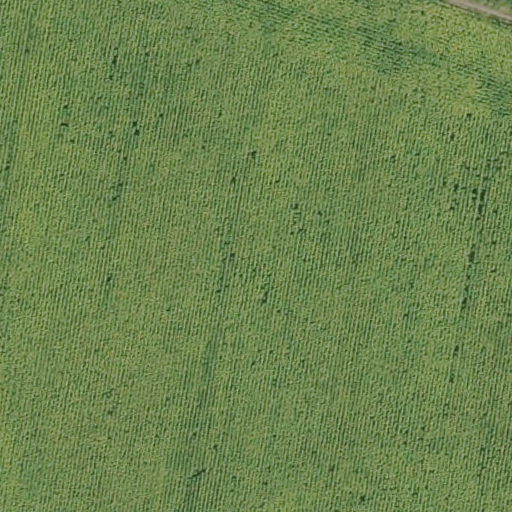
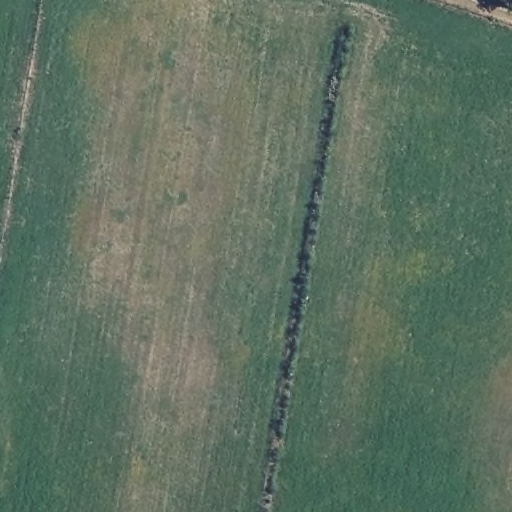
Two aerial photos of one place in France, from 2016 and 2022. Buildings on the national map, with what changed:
[]

